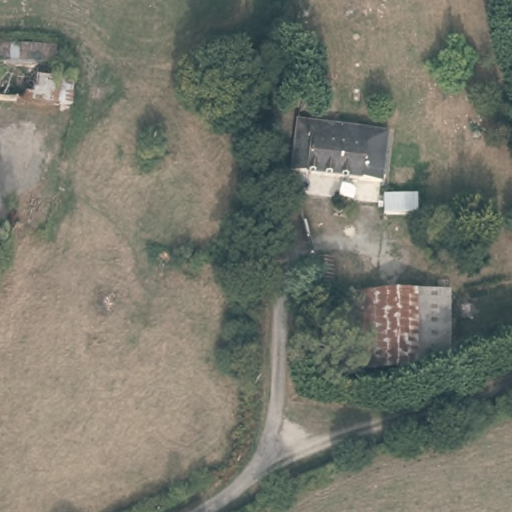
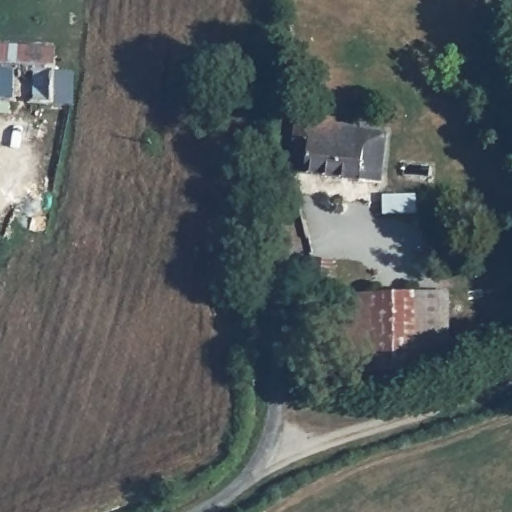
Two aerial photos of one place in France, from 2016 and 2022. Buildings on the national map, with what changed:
unchanged [(55,48),(54,71),(72,73),(71,104),(51,104),(0,101),(0,45),(55,48)]
unchanged [(373,133),(371,149),(380,151),(374,185),(305,176),(308,134),(310,124),(373,133)]
unchanged [(384,194),(417,194),(417,212),(383,214),(384,194)]
unchanged [(331,261),(330,306),(309,308),(312,259),(331,261)]
unchanged [(415,292),(416,371),(379,372),(378,293),(415,292)]
unchanged [(450,292),(451,371),(416,371),(415,292),(450,292)]
unchanged [(379,372),(344,373),(342,294),(378,293),(379,372)]

